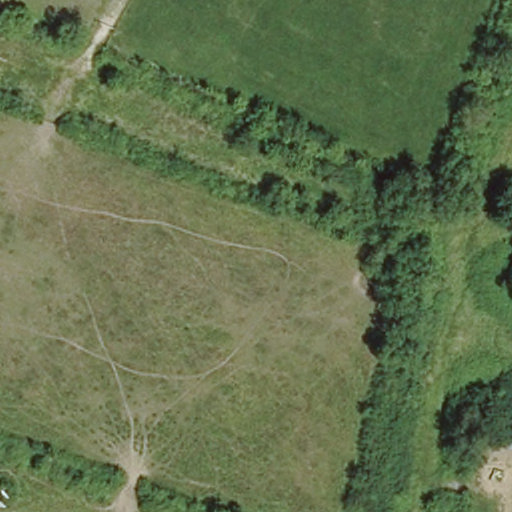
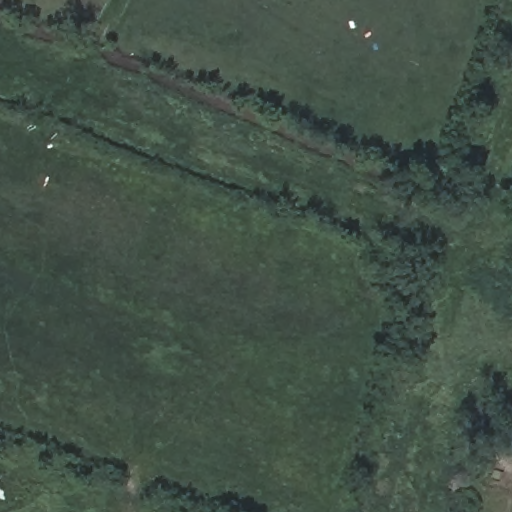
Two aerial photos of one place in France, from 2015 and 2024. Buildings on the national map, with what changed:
unchanged [(373,265),(391,272),(383,291),(365,283),(373,265)]

